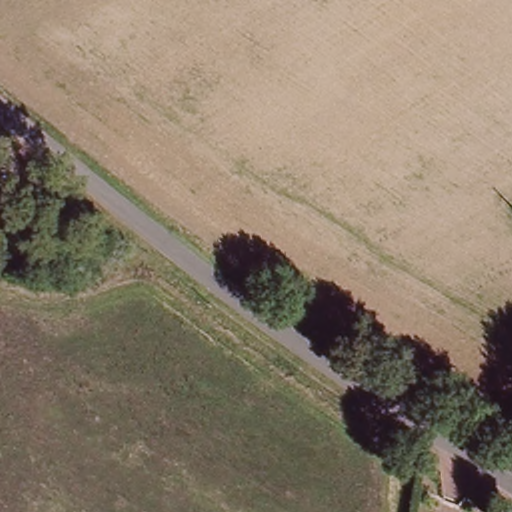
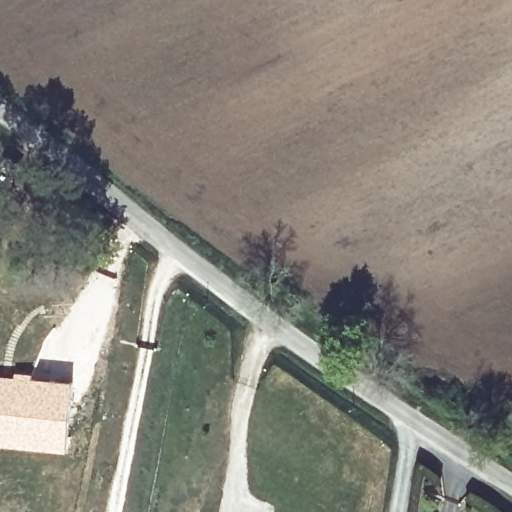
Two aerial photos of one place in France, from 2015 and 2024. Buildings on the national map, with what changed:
demolished [(17,142),(31,153),(22,165),(25,178),(22,190),(16,198),(6,202),(0,204),(0,154),(9,154),(17,142)]
new [(31,379),(74,384),(67,430),(26,426),(27,419),(0,417),(0,382),(30,385),(31,379)]
new [(26,426),(67,430),(66,449),(0,442),(0,417),(27,419),(26,426)]

